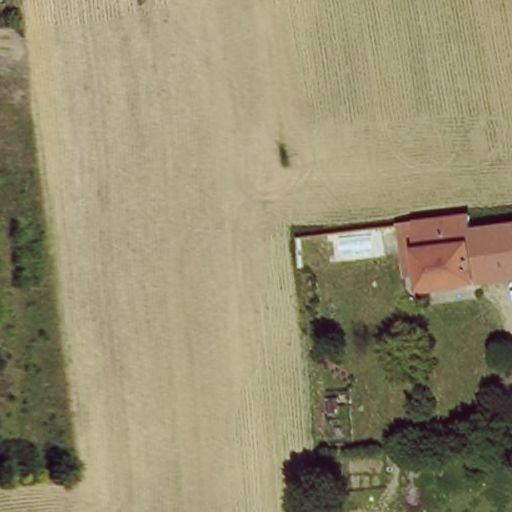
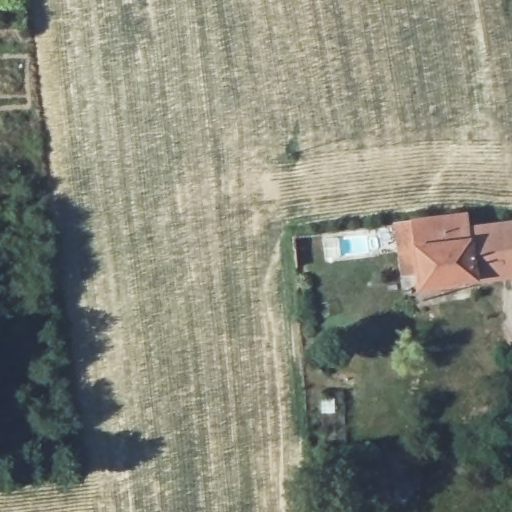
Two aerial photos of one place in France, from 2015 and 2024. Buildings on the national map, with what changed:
unchanged [(485,278),(427,286),(416,220),(472,212),(475,211),(477,227),(485,278)]
unchanged [(477,227),(512,221),(512,273),(485,278),(477,227)]

